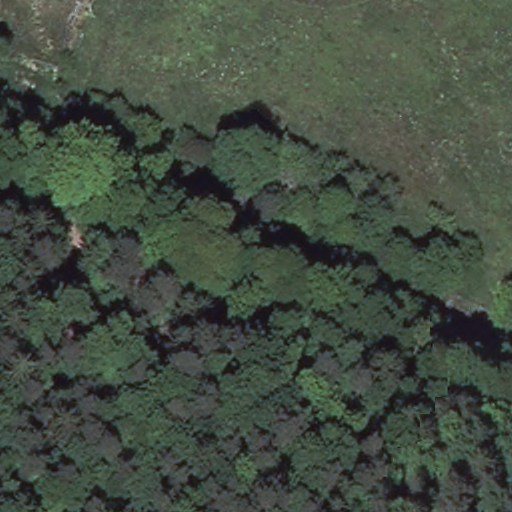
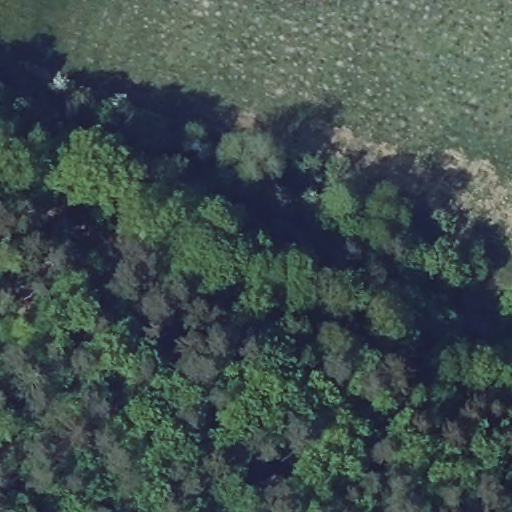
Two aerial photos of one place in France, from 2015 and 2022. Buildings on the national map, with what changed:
[]

